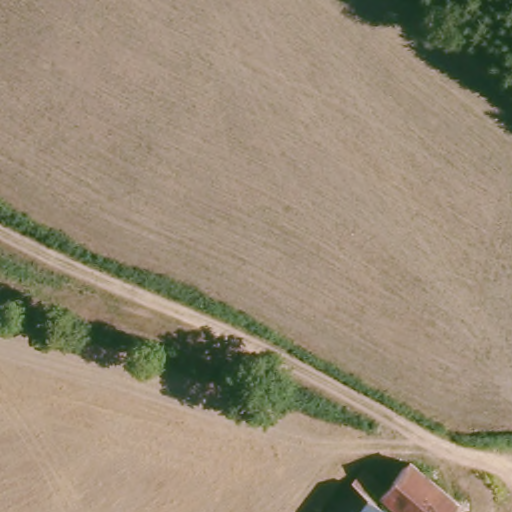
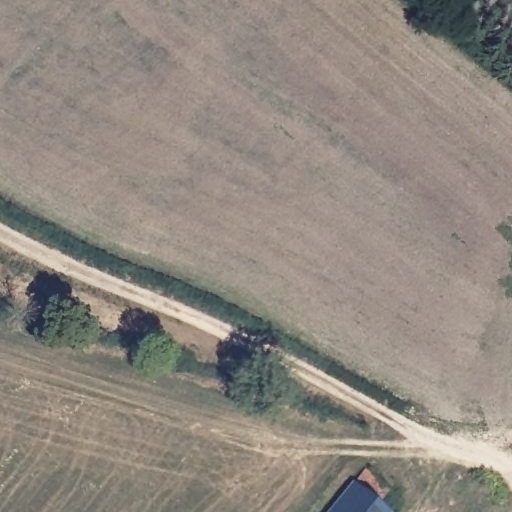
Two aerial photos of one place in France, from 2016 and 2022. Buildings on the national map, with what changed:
demolished [(451,512),(399,512),(381,498),(407,462),(418,469),(458,504),(451,512)]
unchanged [(384,512),(328,512),(350,486),(384,512)]

